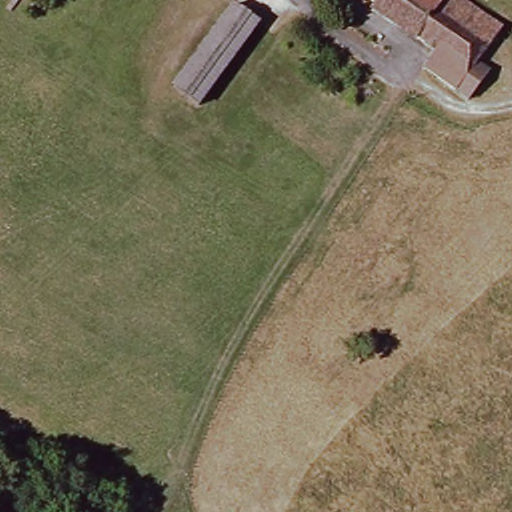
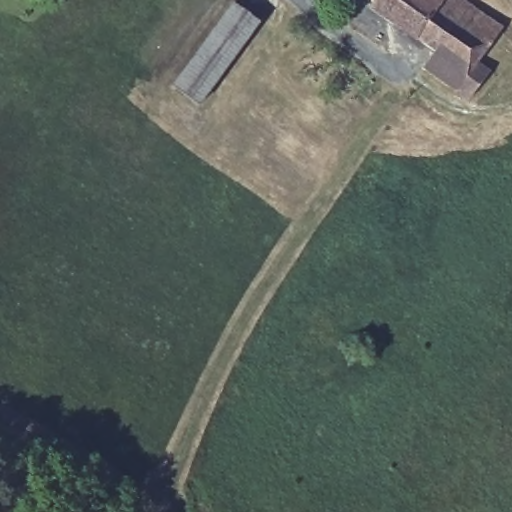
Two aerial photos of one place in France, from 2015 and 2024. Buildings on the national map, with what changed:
unchanged [(435,56),(370,11),(373,6),(364,0),(452,0),(501,36),(477,70),(488,78),(468,104),(457,95),(424,75),(435,56)]
unchanged [(261,33),(205,110),(175,90),(231,12),(261,33)]

